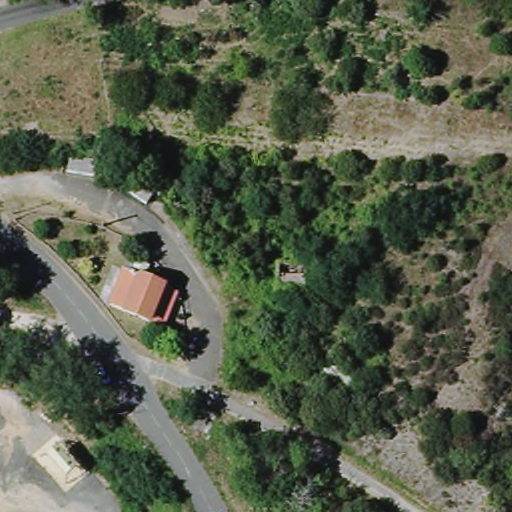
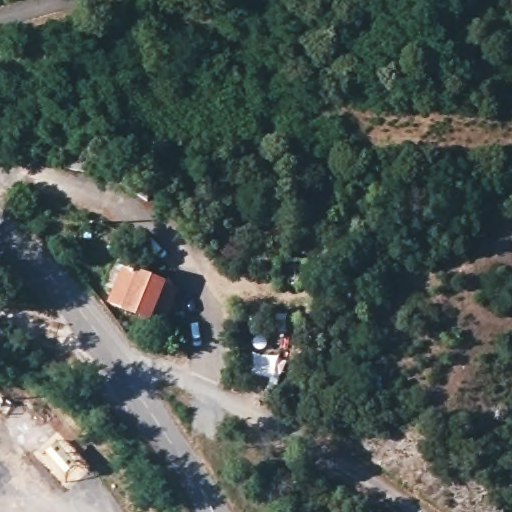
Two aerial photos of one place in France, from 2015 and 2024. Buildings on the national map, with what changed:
unchanged [(153,317),(125,310),(111,307),(117,276),(133,279),(160,285),(153,317)]

